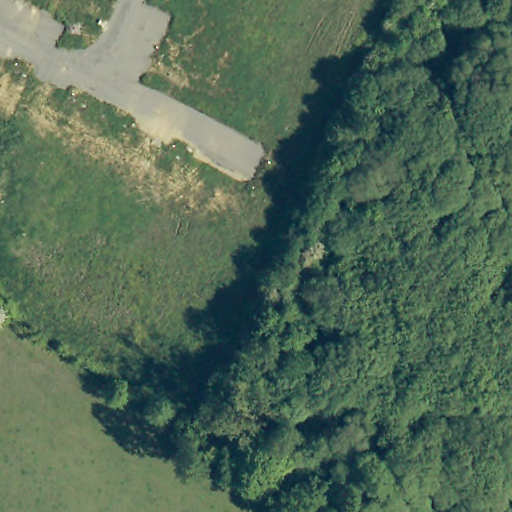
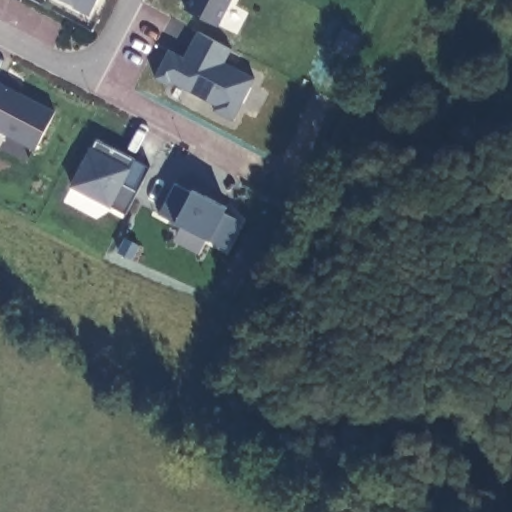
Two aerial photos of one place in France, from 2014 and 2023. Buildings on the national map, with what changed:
new [(62,0),(98,0),(90,15),(62,0)]
new [(185,7),(189,0),(233,0),(219,26),(185,7)]
new [(215,111),(217,106),(171,80),(168,85),(155,77),(170,48),(185,56),(198,30),(231,47),(224,62),(255,78),(235,120),(215,111)]
new [(0,82),(55,110),(36,150),(0,131),(0,82)]
unchanged [(70,185),(90,146),(94,149),(98,140),(151,167),(126,214),(70,185)]
new [(228,249),(211,239),(177,222),(162,212),(179,182),(193,189),(228,205),(225,211),(241,220),(228,249)]

